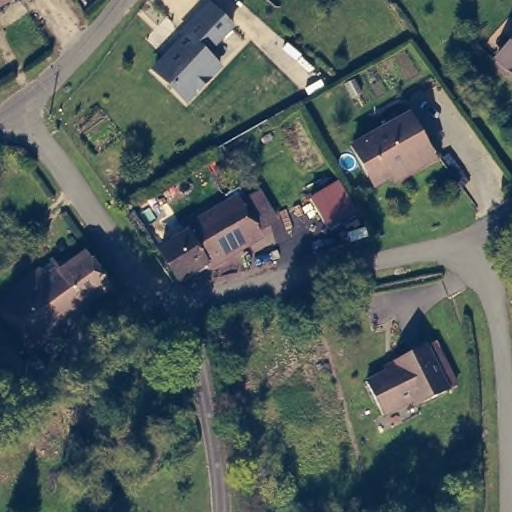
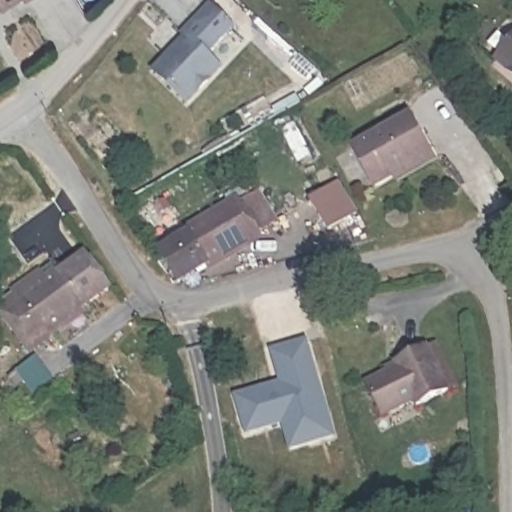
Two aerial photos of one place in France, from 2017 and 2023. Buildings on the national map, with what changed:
unchanged [(0,0),(13,0),(0,7),(0,0)]
unchanged [(182,25),(208,0),(211,0),(234,26),(212,51),(224,68),(188,106),(153,67),(185,29),(182,25)]
unchanged [(512,69),(512,78),(508,74),(512,69)]
unchanged [(406,115),(429,158),(394,177),(389,170),(375,176),(348,145),(406,115)]
new [(337,181),(355,211),(328,228),(309,198),(337,181)]
unchanged [(261,191),(276,220),(183,276),(165,248),(261,191)]
unchanged [(59,268),(89,252),(115,302),(24,352),(0,304),(0,292),(13,286),(11,281),(53,258),(59,268)]
new [(286,433),(283,424),(246,436),(233,397),(281,383),(271,349),(306,339),(334,437),(310,445),(291,451),(286,433)]
unchanged [(397,365),(394,358),(427,344),(447,390),(415,405),(412,399),(381,412),(368,378),(397,365)]

